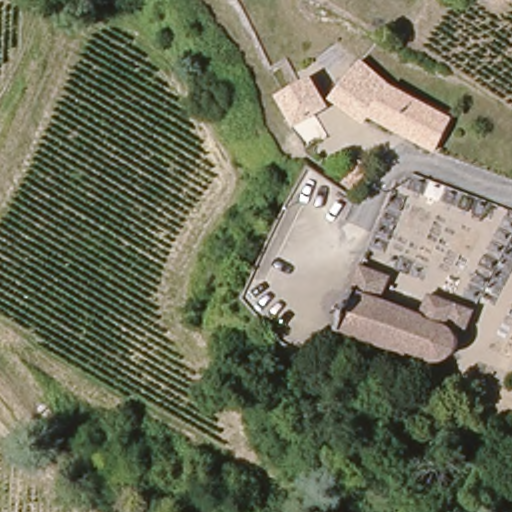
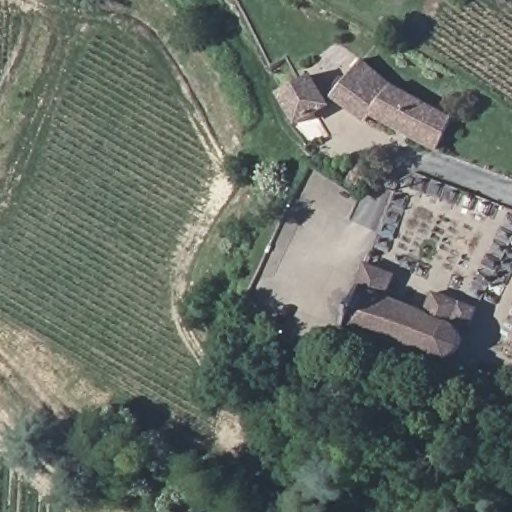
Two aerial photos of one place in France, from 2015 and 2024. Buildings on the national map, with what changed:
unchanged [(323,95),(324,94),(350,55),(451,111),(429,145),(361,114),(357,120),(323,95)]
unchanged [(279,90),(293,82),(308,75),(320,104),(322,108),(298,121),(286,106),(279,90)]
unchanged [(389,269),(380,295),(379,297),(417,312),(421,303),(427,287),(460,300),(475,306),(465,331),(460,329),(461,333),(461,335),(461,338),(461,343),(459,347),(454,353),(447,357),(439,359),(413,348),(411,352),(343,325),(365,260),(389,269)]

